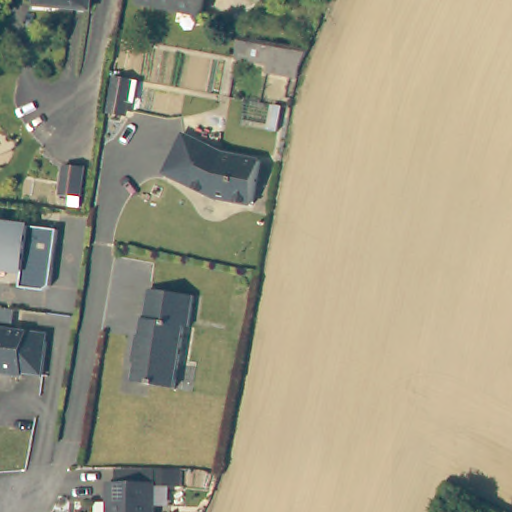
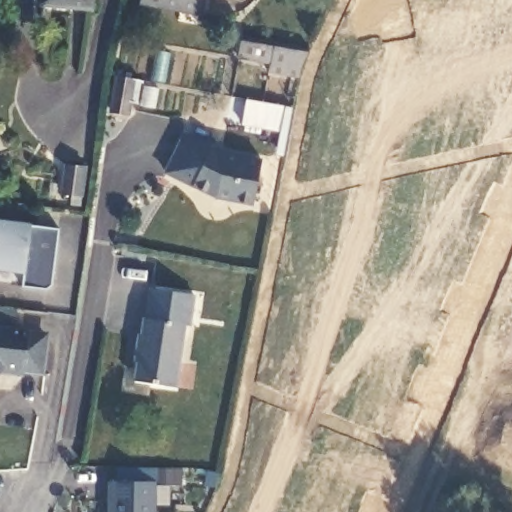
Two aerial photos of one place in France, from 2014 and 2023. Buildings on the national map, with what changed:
unchanged [(37,5),(37,0),(90,0),(89,10),(37,5)]
unchanged [(142,7),(144,0),(204,0),(202,16),(142,7)]
unchanged [(268,75),(271,61),(237,55),(240,39),(306,52),(300,66),(297,81),(268,75)]
unchanged [(126,118),(107,115),(112,80),(115,81),(129,84),(126,118)]
unchanged [(227,154),(258,161),(250,206),(217,198),(165,176),(182,138),(227,154)]
unchanged [(62,183),(66,154),(87,156),(82,186),(62,183)]
unchanged [(57,222),(54,278),(48,283),(24,282),(25,265),(0,263),(0,218),(57,222)]
unchanged [(192,301),(187,330),(183,329),(172,390),(136,383),(139,361),(132,360),(137,337),(141,338),(148,293),(192,301)]
unchanged [(44,332),(44,338),(49,339),(47,373),(27,372),(27,375),(15,375),(15,371),(7,370),(2,377),(0,377),(0,329),(44,332)]
unchanged [(151,512),(106,512),(106,483),(151,484),(151,512)]

